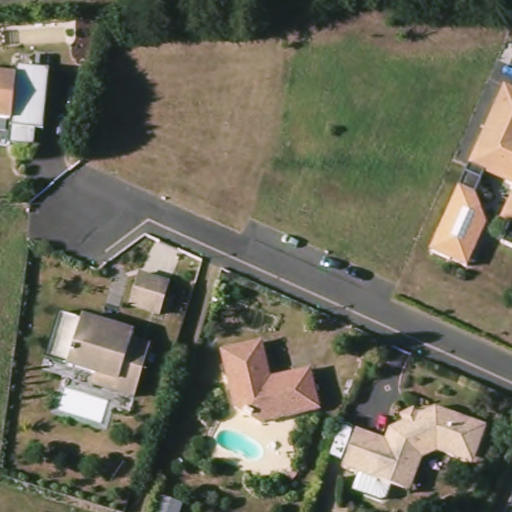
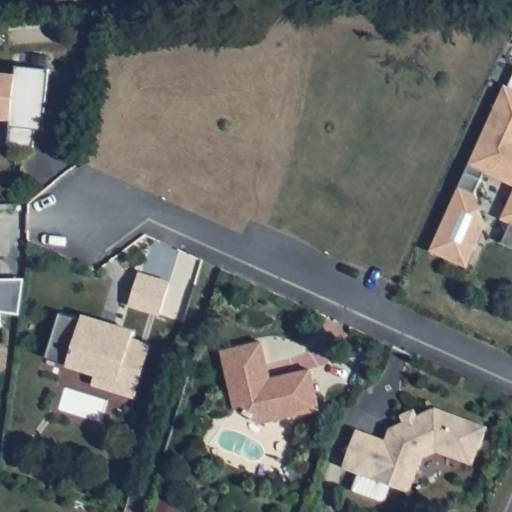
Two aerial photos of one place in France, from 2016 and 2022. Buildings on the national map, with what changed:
unchanged [(6,139),(8,114),(0,114),(0,69),(14,70),(15,62),(49,65),(45,96),(41,125),(34,124),(32,141),(6,139)]
unchanged [(501,84),(512,89),(512,184),(484,174),(474,193),(488,224),(464,267),(431,250),(501,84)]
unchanged [(503,244),(509,225),(497,220),(512,187),(512,248),(503,244)]
unchanged [(128,299),(137,269),(168,278),(158,309),(128,299)]
new [(19,314),(0,311),(0,280),(24,279),(19,314)]
unchanged [(91,378),(94,368),(44,352),(58,306),(80,313),(81,311),(132,327),(129,334),(148,340),(133,391),(91,378)]
unchanged [(231,402),(218,346),(257,336),(266,373),(287,368),(306,364),(315,404),(256,418),(231,402)]
unchanged [(369,473),(339,462),(353,424),(382,434),(387,423),(432,402),(484,421),(475,444),(470,459),(455,454),(434,446),(419,453),(413,470),(406,487),(369,473)]

